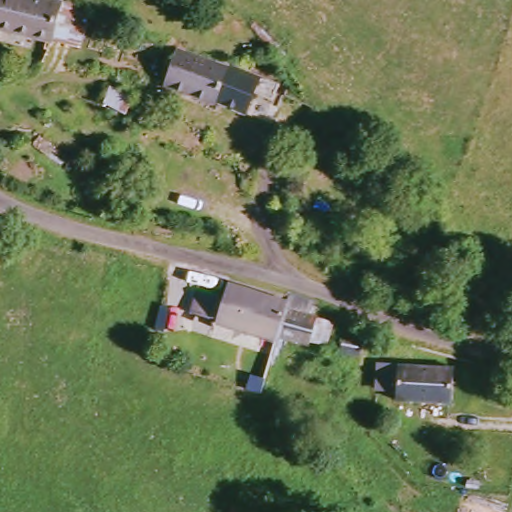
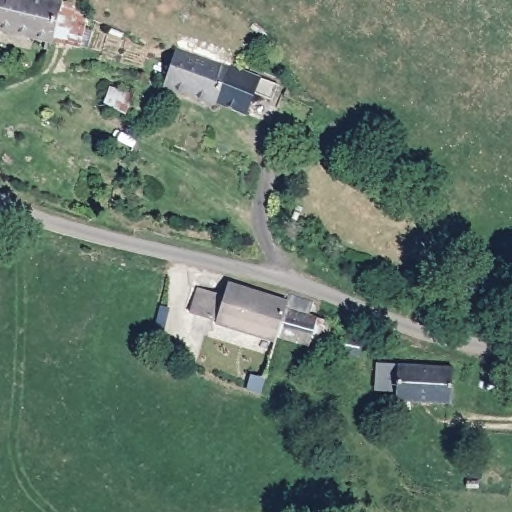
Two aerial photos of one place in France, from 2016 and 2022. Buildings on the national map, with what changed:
unchanged [(66,52),(1,29),(0,28),(0,0),(37,0),(80,17),(66,52)]
unchanged [(223,67),(272,82),(267,98),(247,92),(241,112),(211,102),(210,106),(155,89),(169,51),(223,67)]
unchanged [(175,314),(184,287),(212,294),(216,281),(276,298),(266,335),(265,341),(175,314)]
unchanged [(315,346),(300,342),(299,344),(266,335),(276,298),(276,293),(302,303),(300,314),(306,315),(323,320),(315,346)]
unchanged [(355,364),(332,359),(335,344),(356,349),(355,364)]
unchanged [(448,387),(455,388),(453,405),(445,405),(445,409),(391,402),(395,364),(449,371),(448,387)]

